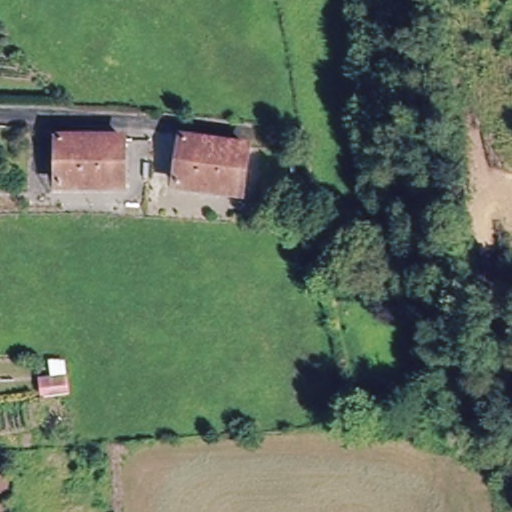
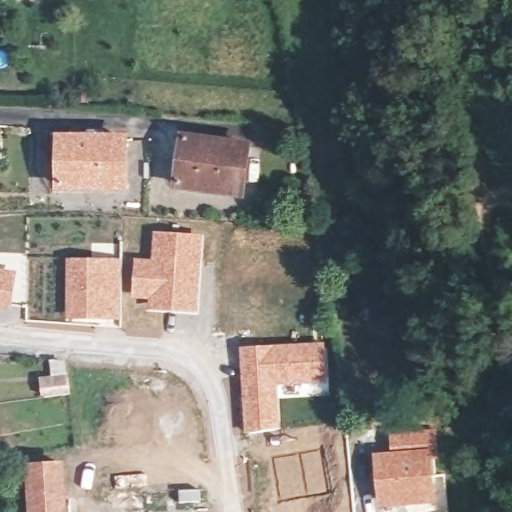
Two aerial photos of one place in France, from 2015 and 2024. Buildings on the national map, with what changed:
unchanged [(122,187),(58,189),(57,143),(121,142),(122,187)]
unchanged [(242,199),(180,192),(189,145),(249,154),(242,199)]
new [(134,258),(150,259),(152,230),(204,234),(199,314),(146,311),(147,301),(132,299),(134,258)]
new [(65,257),(121,259),(121,319),(65,319),(65,257)]
new [(18,269),(11,310),(0,309),(0,266),(18,269)]
new [(325,341),(328,384),(277,387),(280,429),(245,433),(239,347),(325,341)]
unchanged [(60,377),(62,394),(36,395),(35,379),(60,377)]
new [(407,512),(406,507),(377,508),(372,453),(389,451),(388,432),(435,429),(436,453),(433,453),(435,475),(444,474),(447,512),(407,512)]
new [(69,512),(28,512),(25,464),(64,462),(69,512)]

